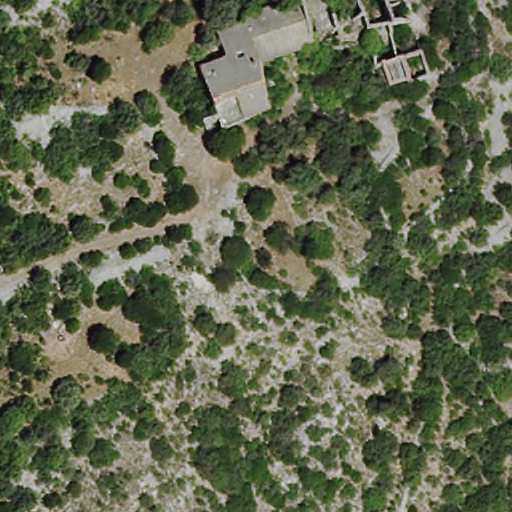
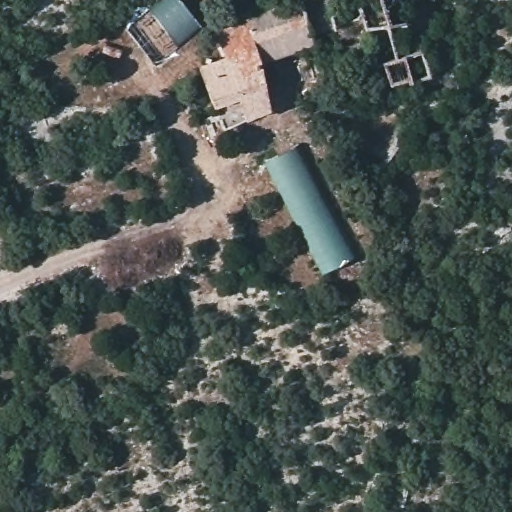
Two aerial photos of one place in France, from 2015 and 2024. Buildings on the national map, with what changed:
new [(200,25),(153,64),(125,28),(159,0),(180,0),(200,25)]
unchanged [(227,67),(222,41),(264,24),(263,7),(280,0),(351,0),(316,12),(319,53),(256,70),(267,118),(223,128),(198,76),(227,67)]
unchanged [(420,87),(399,96),(387,68),(410,60),(420,87)]
new [(352,259),(321,275),(266,162),(296,147),(352,259)]

